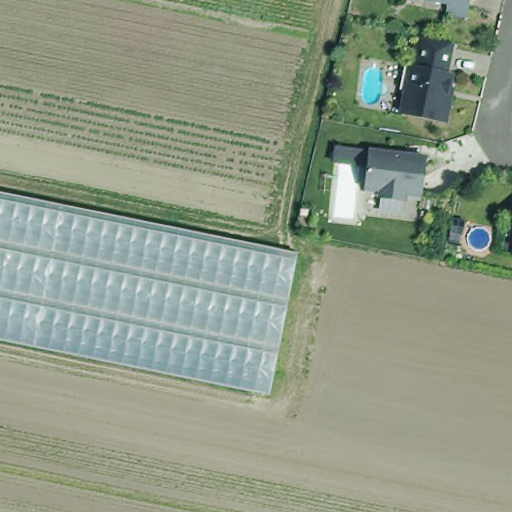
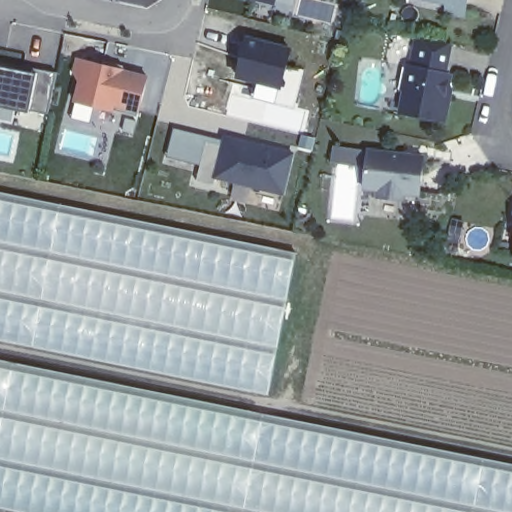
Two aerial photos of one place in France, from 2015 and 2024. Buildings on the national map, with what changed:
new [(254,0),(276,0),(275,5),(254,0)]
unchanged [(475,10),(454,6),(417,0),(477,0),(475,10)]
new [(238,79),(249,37),(294,48),(283,91),(238,79)]
unchanged [(454,46),(450,74),(455,74),(446,123),(402,115),(409,64),(413,65),(418,40),(454,46)]
new [(142,113),(115,107),(114,112),(74,102),(79,80),(73,73),(77,58),(151,75),(142,113)]
new [(30,110),(30,114),(0,108),(0,67),(27,72),(27,67),(57,73),(49,114),(30,110)]
new [(290,155),(283,197),(214,182),(213,185),(197,181),(205,143),(219,147),(220,139),(290,155)]
unchanged [(367,167),(333,163),(335,147),(369,151),(367,167)]
unchanged [(407,193),(407,202),(381,201),(380,190),(365,190),(369,151),(427,156),(422,193),(407,193)]
unchanged [(0,339),(0,192),(297,252),(270,394),(0,339)]
new [(20,512),(0,508),(0,360),(512,464),(512,512),(20,512)]

